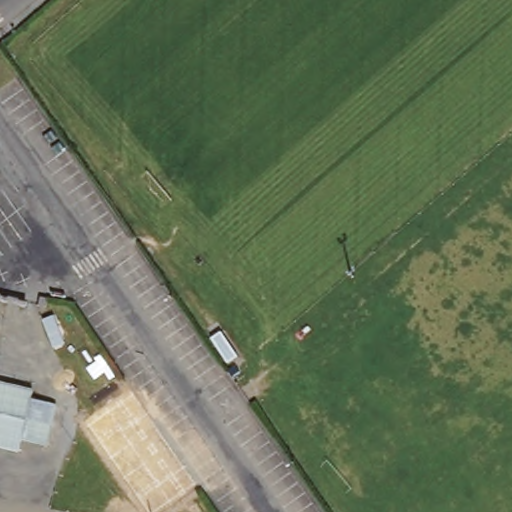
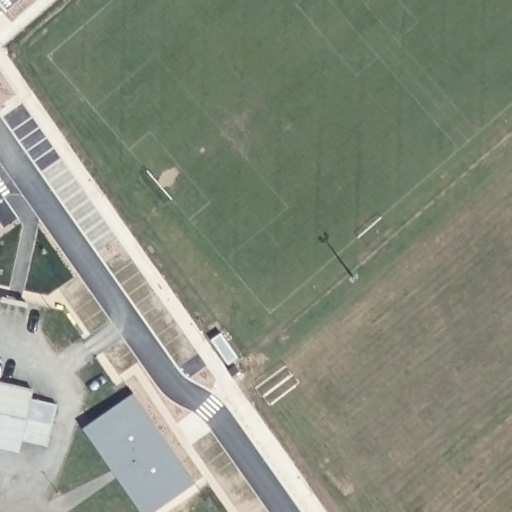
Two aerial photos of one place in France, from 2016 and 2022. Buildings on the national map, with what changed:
unchanged [(29,391),(28,399),(52,404),(48,426),(0,414),(0,384),(29,391)]
new [(191,483),(150,512),(144,512),(83,425),(128,394),(191,483)]
unchanged [(48,426),(44,444),(20,438),(18,447),(0,443),(0,414),(48,426)]

